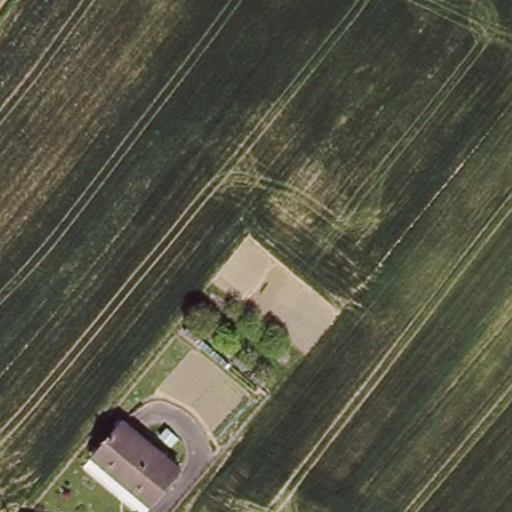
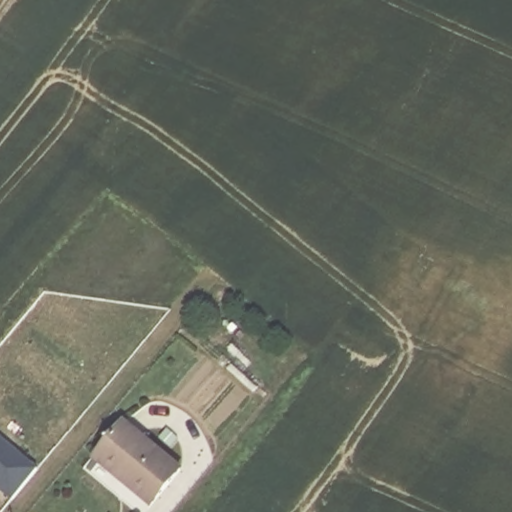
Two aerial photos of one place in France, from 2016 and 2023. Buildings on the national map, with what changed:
unchanged [(183,465),(153,502),(98,455),(128,419),(183,465)]
new [(12,501),(0,490),(0,438),(38,470),(12,501)]

